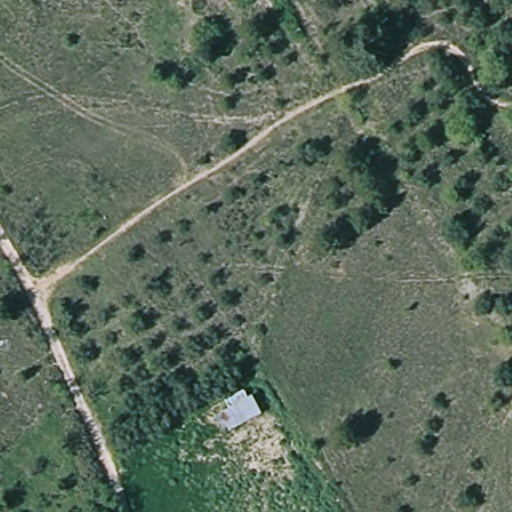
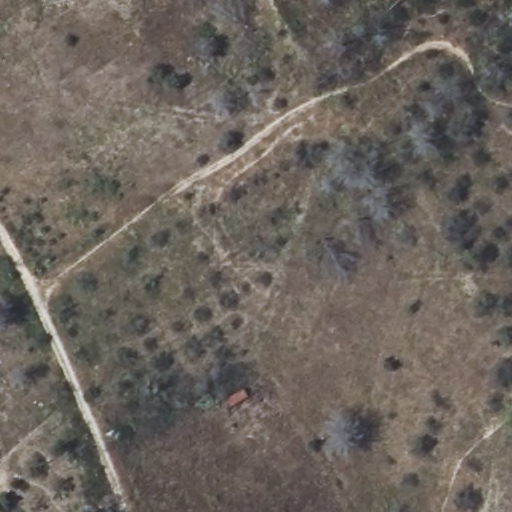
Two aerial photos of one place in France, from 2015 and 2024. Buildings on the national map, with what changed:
unchanged [(258,392),(264,411),(230,424),(225,413),(228,406),(258,392)]

